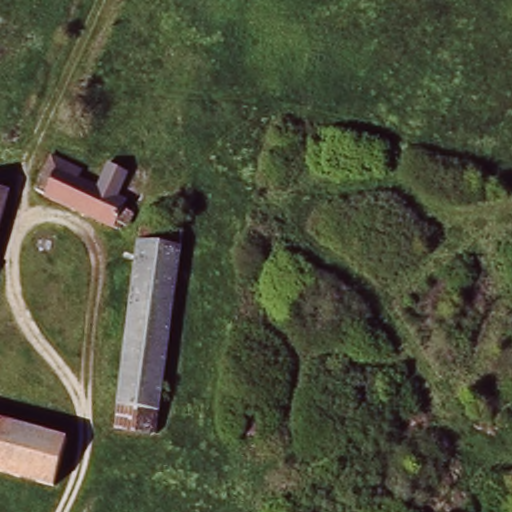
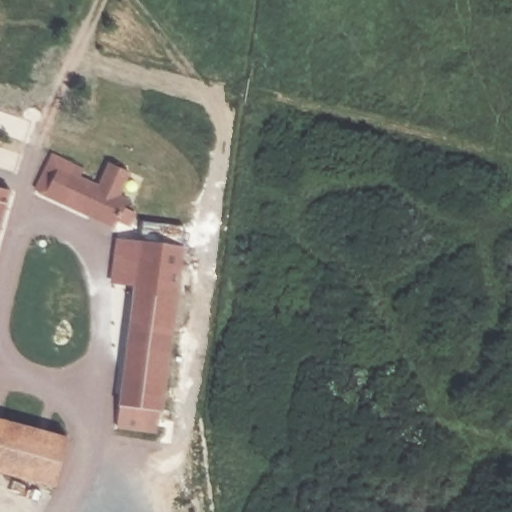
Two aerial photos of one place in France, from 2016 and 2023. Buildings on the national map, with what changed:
unchanged [(46,164),(78,173),(77,184),(95,190),(103,167),(120,172),(115,198),(122,200),(121,206),(130,210),(125,227),(35,201),(46,164)]
unchanged [(120,412),(127,245),(127,237),(178,241),(163,416),(120,412)]
unchanged [(120,412),(163,416),(161,440),(119,436),(120,412)]
unchanged [(0,473),(0,420),(62,430),(55,483),(0,473)]

